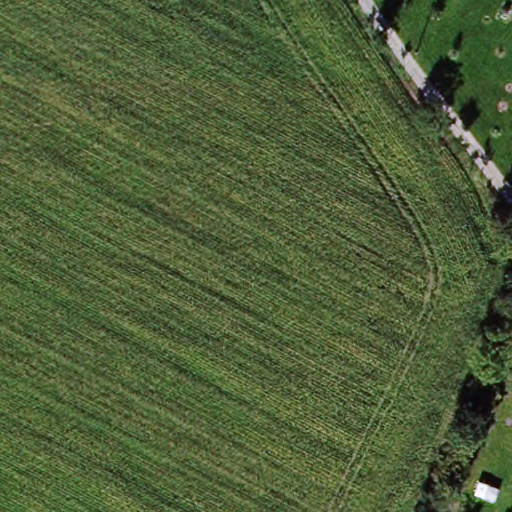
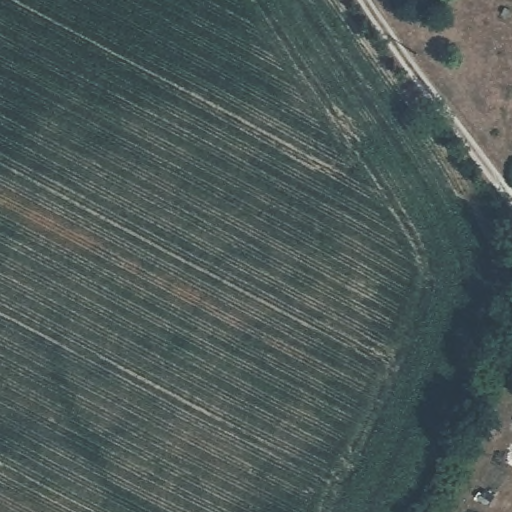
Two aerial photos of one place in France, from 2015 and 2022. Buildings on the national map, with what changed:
[]

